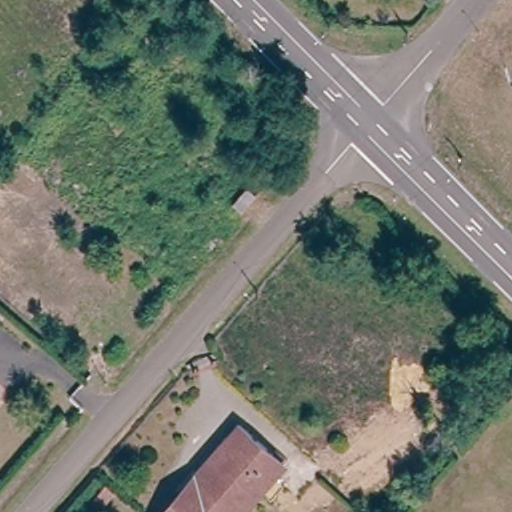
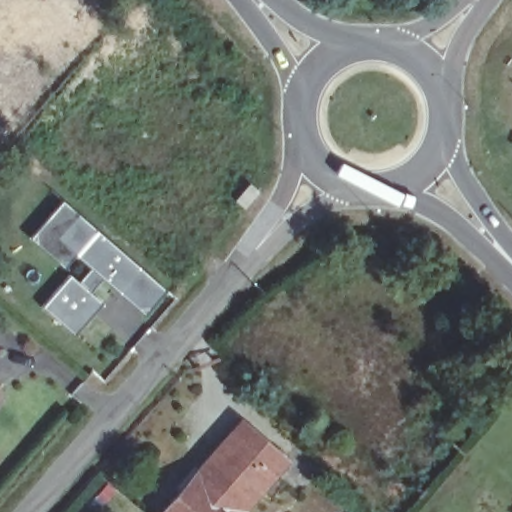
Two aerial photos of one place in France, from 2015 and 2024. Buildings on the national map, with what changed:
unchanged [(262,185),(247,202),(239,195),(253,177),(262,185)]
new [(165,291),(143,316),(102,280),(90,293),(101,304),(73,335),(41,309),(69,275),(78,283),(90,270),(74,257),(64,270),(29,239),(63,201),(165,291)]
unchanged [(238,423),(281,463),(270,475),(257,464),(245,478),(252,486),(226,512),(159,512),(238,423)]

